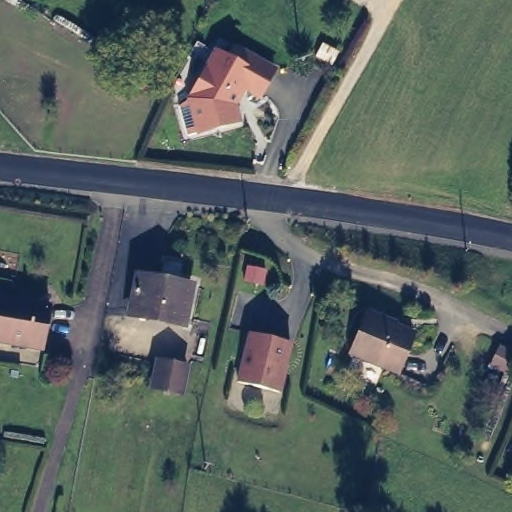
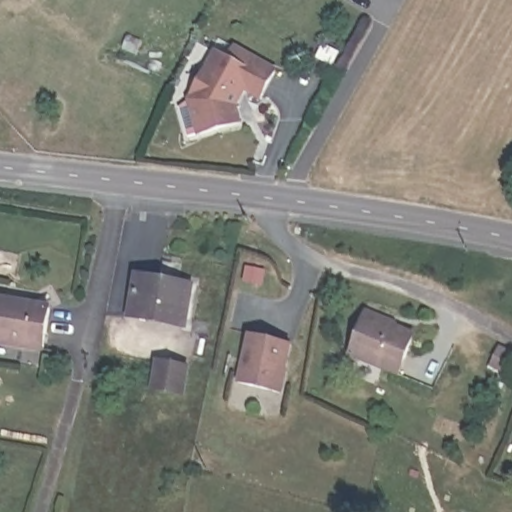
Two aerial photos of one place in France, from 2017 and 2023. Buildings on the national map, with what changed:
unchanged [(185,95),(187,91),(211,48),(223,55),(230,43),(271,66),(255,93),(234,81),(231,86),(234,95),(230,101),(235,117),(215,123),(194,129),(185,95)]
unchanged [(189,287),(182,325),(130,316),(137,277),(189,287)]
unchanged [(48,307),(42,348),(0,342),(0,299),(48,307)]
unchanged [(413,332),(398,370),(351,352),(366,314),(413,332)]
unchanged [(234,382),(245,335),(286,345),(274,392),(234,382)]
unchanged [(507,369),(493,361),(500,348),(512,354),(512,360),(507,369)]
unchanged [(185,393),(156,389),(160,363),(190,367),(185,393)]

